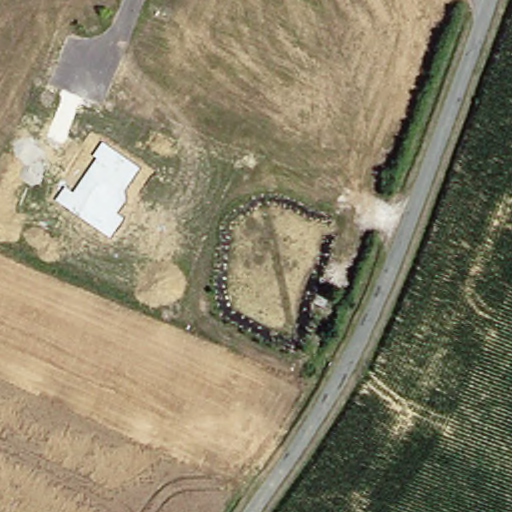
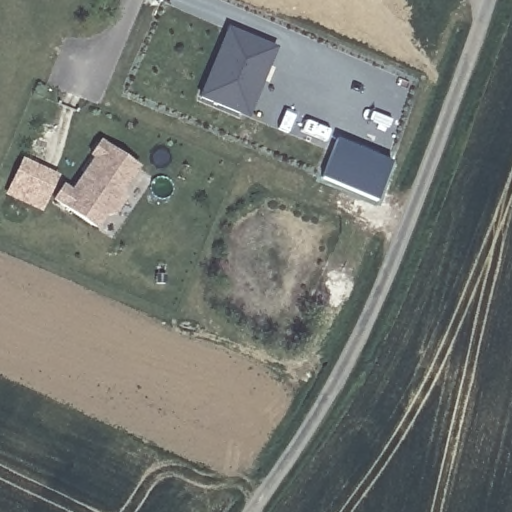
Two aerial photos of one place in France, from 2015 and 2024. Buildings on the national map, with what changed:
new [(229,31),(275,50),(263,80),(257,77),(241,114),(201,98),(229,31)]
new [(375,202),(321,180),(335,140),(390,163),(375,202)]
new [(124,192),(127,201),(117,217),(107,217),(97,232),(52,201),(64,185),(72,190),(94,160),(90,157),(101,141),(141,168),(124,192)]
new [(41,214),(3,196),(21,159),(60,176),(41,214)]

